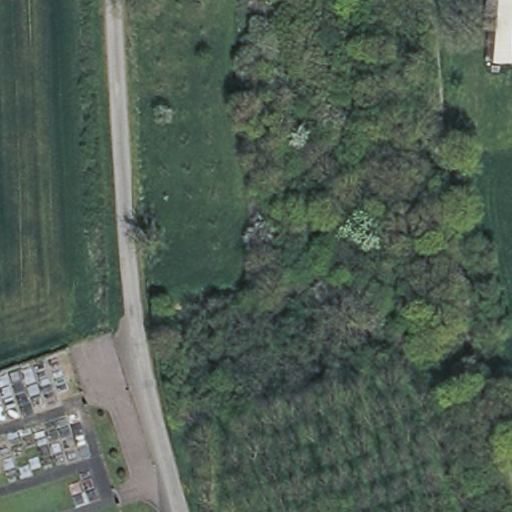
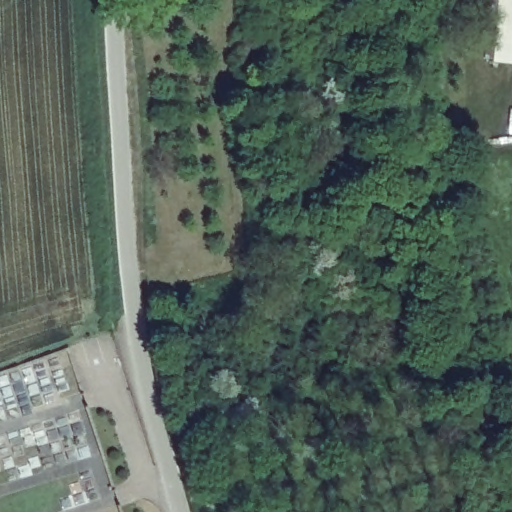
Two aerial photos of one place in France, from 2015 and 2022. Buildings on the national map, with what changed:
unchanged [(493,59),(497,0),(512,0),(512,60),(493,59)]

